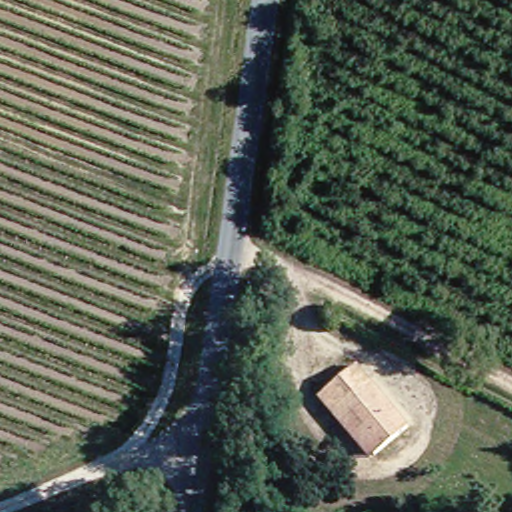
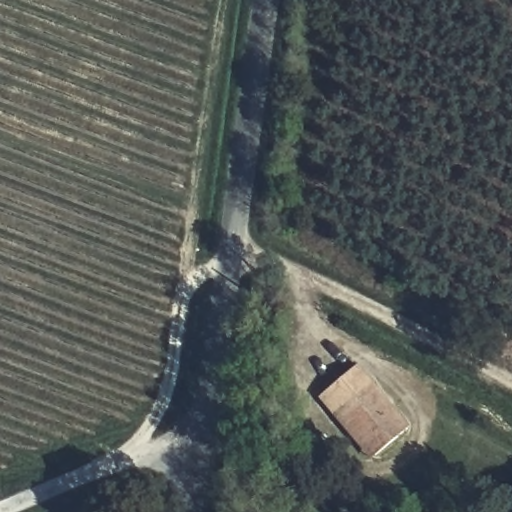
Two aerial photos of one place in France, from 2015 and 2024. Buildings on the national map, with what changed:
unchanged [(333,428),(310,396),(348,367),(400,439),(370,459),(361,466),(333,428)]

